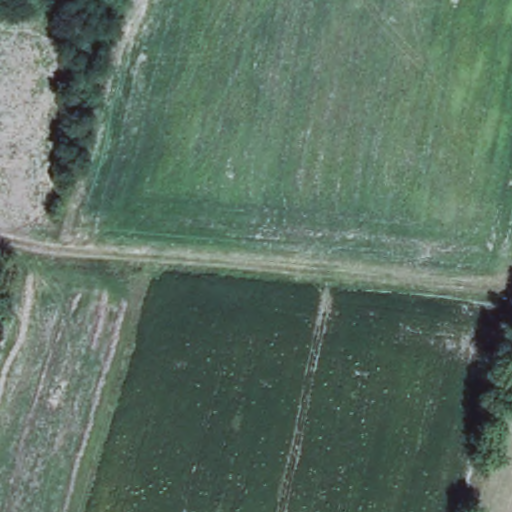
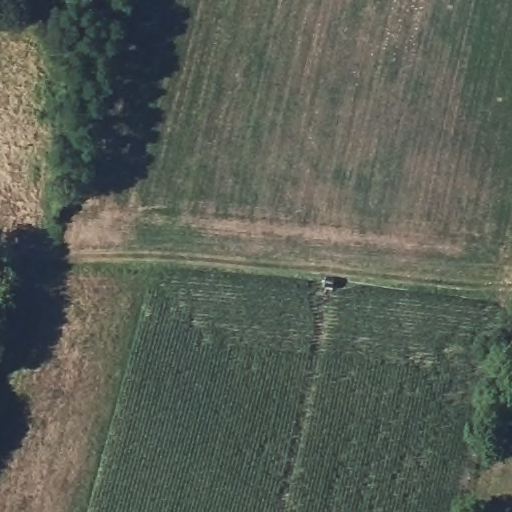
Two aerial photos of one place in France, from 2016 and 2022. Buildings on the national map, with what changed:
[]

